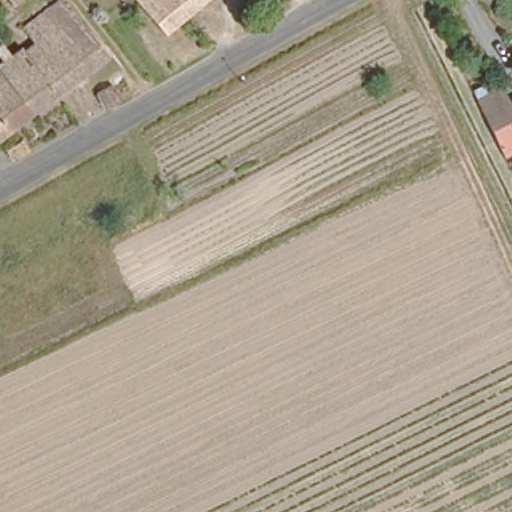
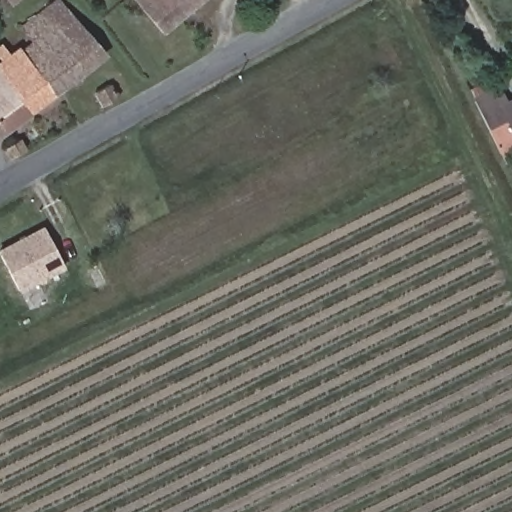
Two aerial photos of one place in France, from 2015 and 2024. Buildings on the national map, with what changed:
unchanged [(10,2),(8,0),(11,0),(10,2)]
unchanged [(54,60),(42,47),(24,27),(57,0),(64,0),(90,31),(54,60)]
unchanged [(162,33),(136,0),(203,0),(162,33)]
unchanged [(110,56),(60,93),(31,56),(42,47),(54,60),(90,31),(110,56)]
unchanged [(27,106),(0,70),(0,64),(24,46),(31,56),(60,93),(32,114),(27,106)]
unchanged [(8,132),(0,120),(0,70),(27,106),(32,114),(8,132)]
unchanged [(104,106),(95,91),(111,82),(119,97),(104,106)]
unchanged [(480,107),(505,94),(512,106),(512,157),(505,160),(502,154),(480,107)]
unchanged [(0,137),(0,120),(8,132),(0,137)]
unchanged [(2,149),(19,141),(25,151),(9,160),(2,149)]
new [(19,293),(0,256),(0,250),(45,227),(67,268),(19,293)]

